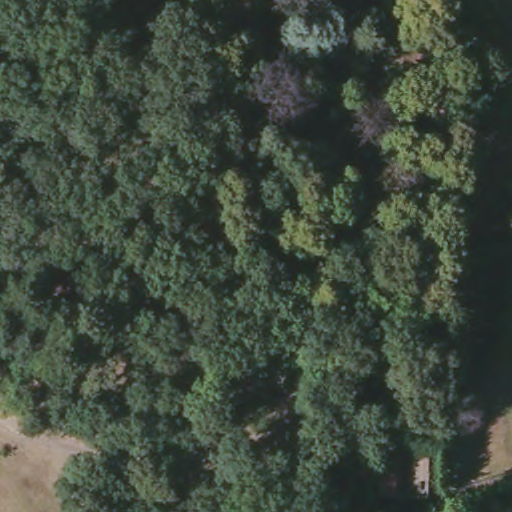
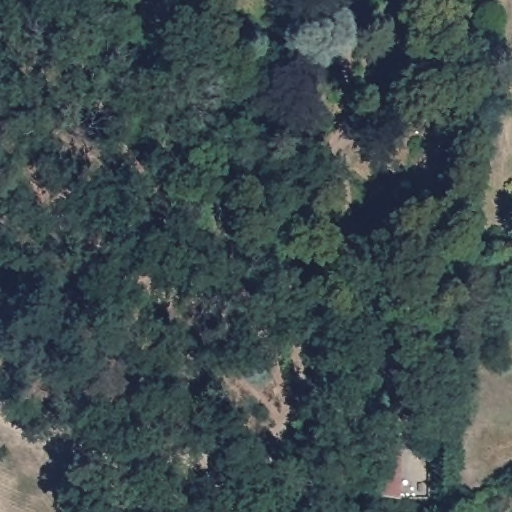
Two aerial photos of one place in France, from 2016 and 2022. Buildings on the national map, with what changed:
unchanged [(141,0),(170,0),(170,23),(142,23),(141,0)]
unchanged [(369,497),(372,456),(434,461),(430,499),(369,497)]

